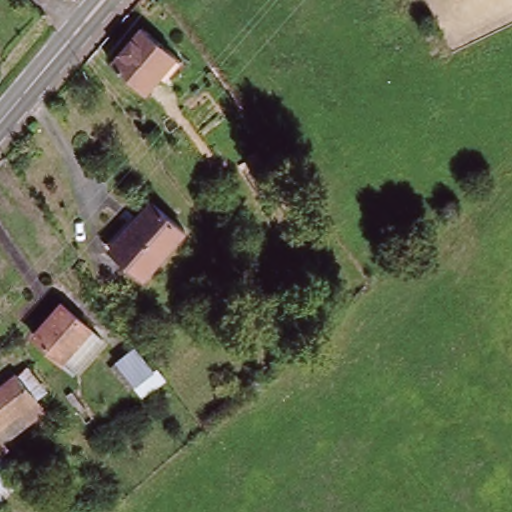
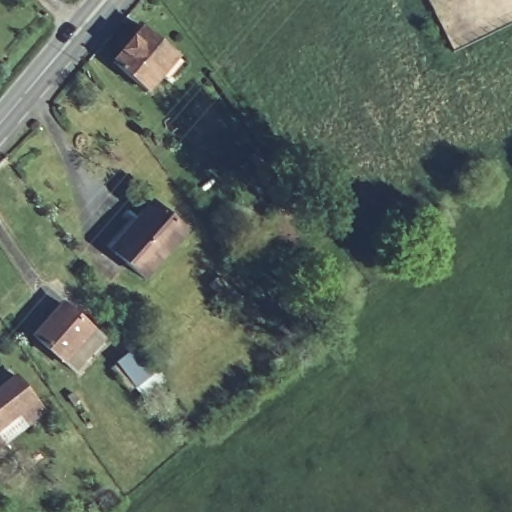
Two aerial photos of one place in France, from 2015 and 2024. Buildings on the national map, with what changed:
unchanged [(113,64),(139,31),(172,59),(145,91),(113,64)]
unchanged [(186,248),(126,280),(104,240),(164,207),(186,248)]
unchanged [(70,375),(28,333),(59,302),(101,345),(70,375)]
unchanged [(114,371),(141,352),(153,370),(159,379),(133,398),(128,391),(114,371)]
unchanged [(13,372),(35,402),(39,415),(0,447),(0,383),(13,372)]
unchanged [(23,477),(0,494),(0,449),(23,477)]

